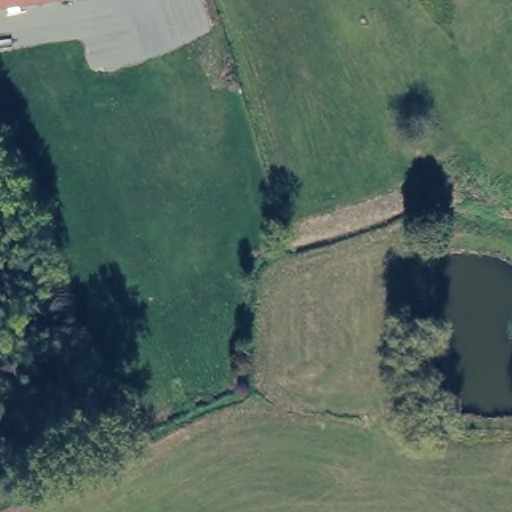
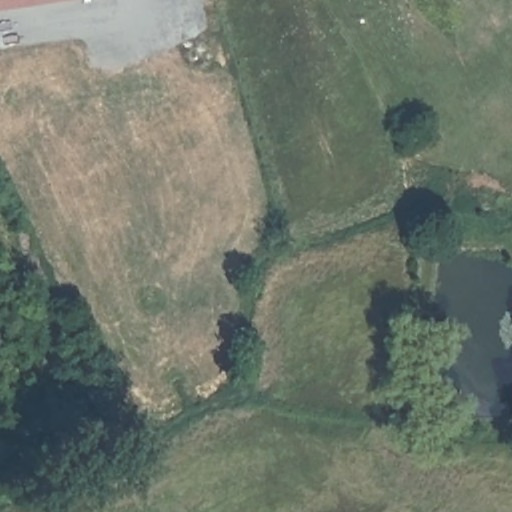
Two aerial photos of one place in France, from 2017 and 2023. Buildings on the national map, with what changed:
unchanged [(0,18),(0,0),(94,0),(95,3),(0,18)]

